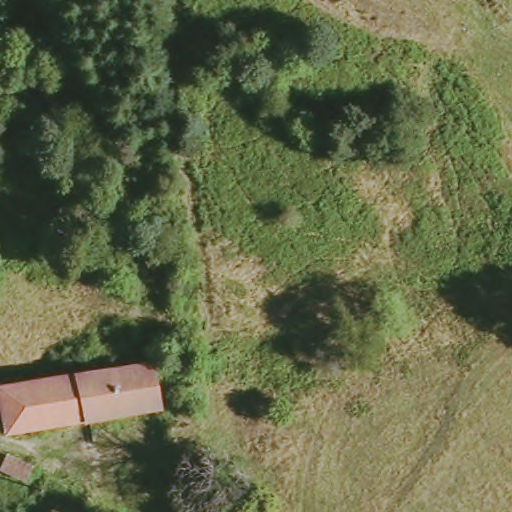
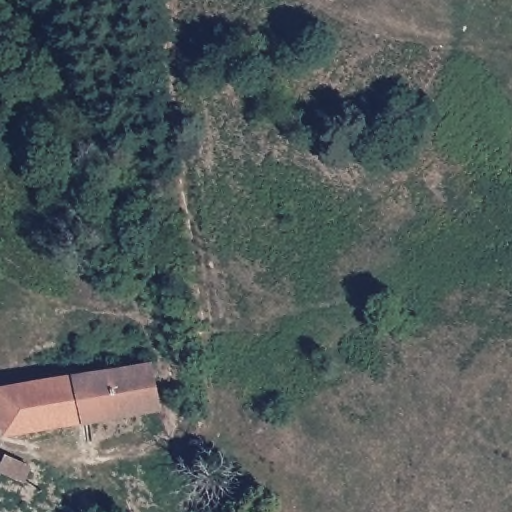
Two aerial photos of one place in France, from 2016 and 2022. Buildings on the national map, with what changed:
unchanged [(5,435),(0,403),(0,388),(151,363),(160,408),(5,435)]
unchanged [(0,470),(7,455),(33,468),(25,483),(0,470)]

